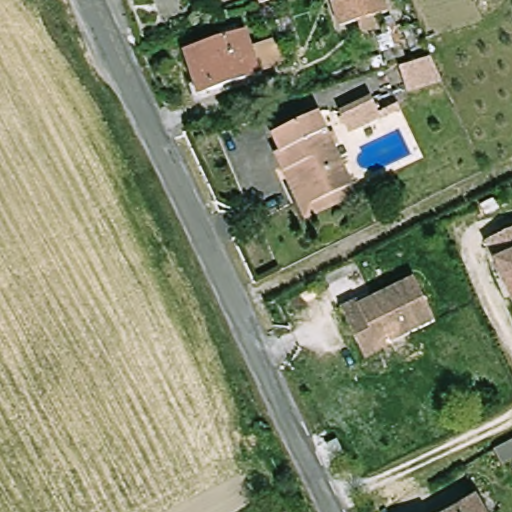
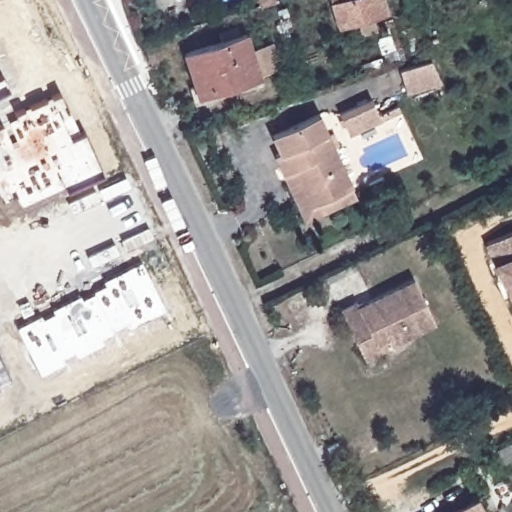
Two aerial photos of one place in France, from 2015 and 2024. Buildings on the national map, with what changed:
unchanged [(265,3),(259,5),(257,0),(274,0),(265,3)]
unchanged [(343,27),(334,0),(386,0),(390,12),(343,27)]
unchanged [(399,46),(392,49),(385,28),(392,26),(399,46)]
unchanged [(258,76),(198,96),(184,53),(244,33),(258,76)]
unchanged [(437,76),(407,90),(396,65),(427,55),(437,76)]
new [(0,94),(0,75),(2,74),(10,89),(0,94)]
new [(67,189),(63,182),(19,202),(15,192),(3,198),(0,193),(0,124),(3,122),(11,142),(17,138),(9,120),(16,115),(15,113),(61,91),(81,133),(85,131),(103,173),(67,189)]
unchanged [(378,112),(395,104),(397,109),(380,117),(348,131),(339,110),(371,96),(378,112)]
unchanged [(354,197),(303,219),(275,154),(280,152),(272,134),(317,114),(354,197)]
unchanged [(375,187),(360,194),(356,185),(371,178),(375,187)]
unchanged [(484,243),(512,230),(512,303),(484,243)]
new [(128,328),(126,323),(113,329),(115,332),(101,338),(104,343),(77,357),(74,351),(63,357),(65,362),(40,375),(16,327),(41,314),(43,318),(54,312),(52,308),(81,294),(83,298),(94,292),(93,290),(106,284),(103,279),(142,260),(167,309),(128,328)]
unchanged [(359,348),(339,305),(355,298),(357,302),(413,275),(434,320),(390,341),(392,344),(364,357),(359,348)]
new [(0,384),(0,358),(10,378),(0,384)]
new [(1,390),(0,390),(0,389),(1,390)]
unchanged [(336,441),(343,454),(333,459),(327,446),(336,441)]
unchanged [(493,451),(502,446),(512,441),(512,459),(500,465),(493,451)]
unchanged [(486,512),(441,512),(475,492),(486,512)]

